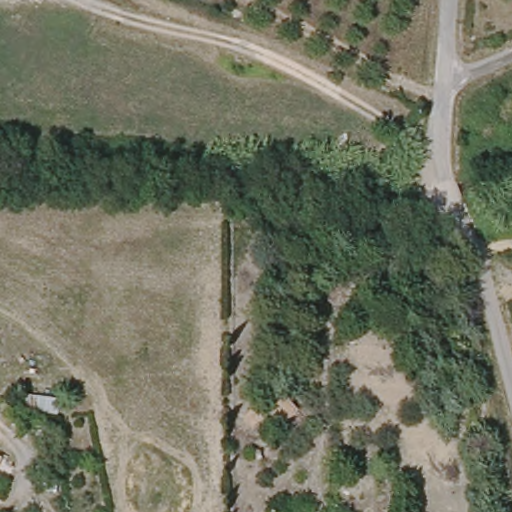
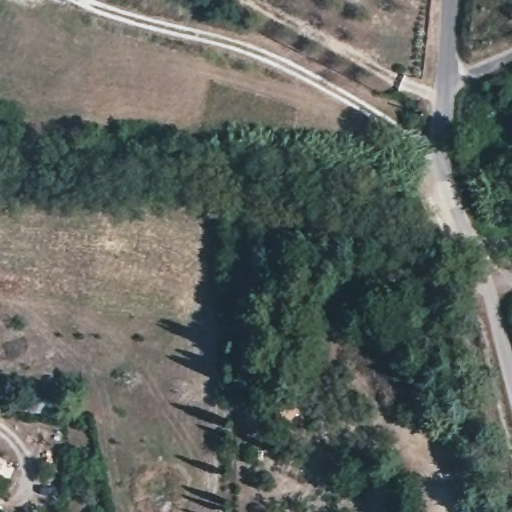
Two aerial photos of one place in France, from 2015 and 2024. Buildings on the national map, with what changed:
unchanged [(299,410),(299,411),(279,429),(277,431),(265,419),(255,429),(245,419),(260,405),(265,410),(283,393),(299,410)]
unchanged [(0,468),(0,463),(2,463),(0,468)]

